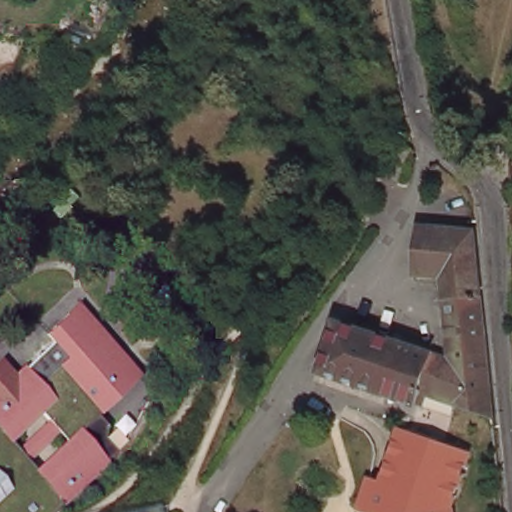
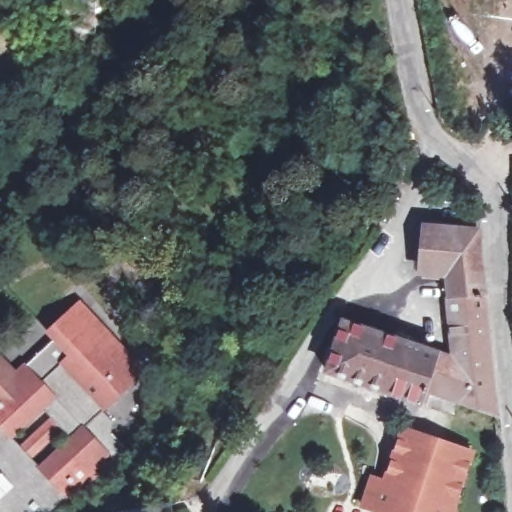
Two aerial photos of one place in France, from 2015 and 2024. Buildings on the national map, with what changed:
unchanged [(411,147),(400,179),(399,180),(383,173),(396,140),(410,146),(411,147)]
unchanged [(492,321),(496,360),(500,395),(501,413),(430,390),(425,404),(332,373),(350,322),(406,342),(461,360),(452,275),(429,273),(433,227),(483,232),(485,257),(489,291),(492,321)]
unchanged [(1,365),(12,366),(21,375),(31,366),(45,380),(46,382),(76,355),(55,331),(76,311),(85,303),(92,311),(149,373),(108,411),(114,417),(118,422),(115,434),(127,446),(108,465),(97,475),(56,512),(0,512),(0,367),(1,365)]
unchanged [(380,478),(391,482),(409,430),(478,453),(461,506),(462,512),(383,512),(370,507),(380,478)]

